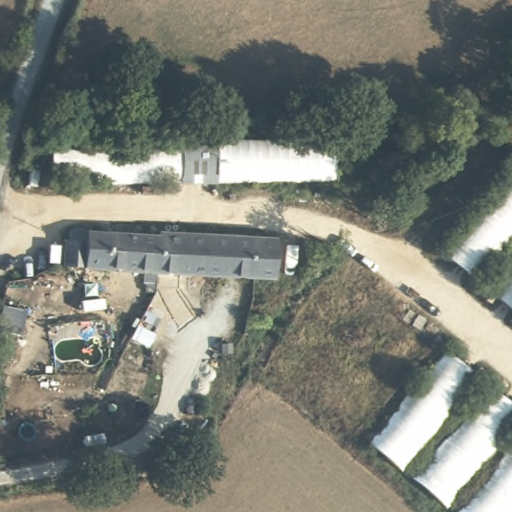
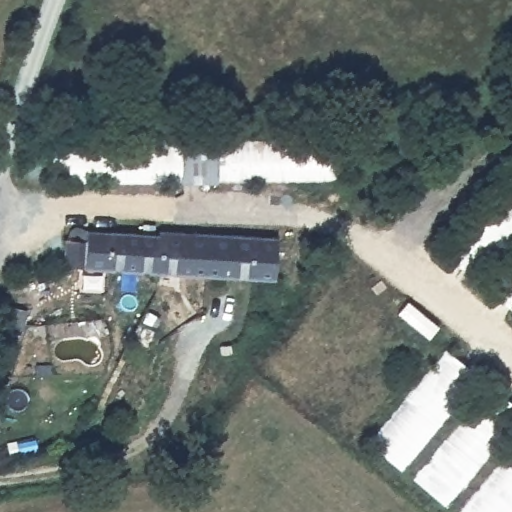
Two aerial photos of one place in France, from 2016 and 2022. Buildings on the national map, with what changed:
unchanged [(332,168),(50,180),(50,136),(331,121),(332,168)]
unchanged [(275,259),(106,257),(105,238),(87,237),(86,256),(64,255),(65,231),(72,232),(67,224),(71,218),(80,225),(159,224),(159,219),(277,221),(275,259)]

